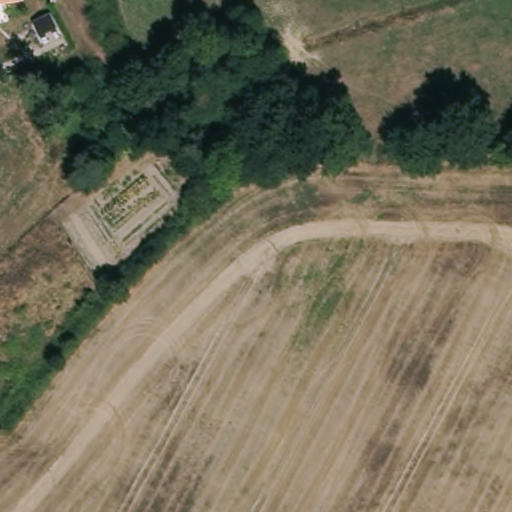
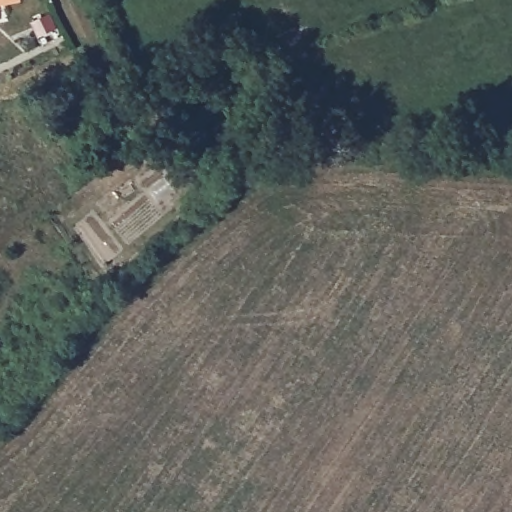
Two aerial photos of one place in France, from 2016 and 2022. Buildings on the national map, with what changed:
unchanged [(0,0),(19,0),(0,5),(0,0)]
unchanged [(51,14),(58,31),(43,37),(36,20),(51,14)]

